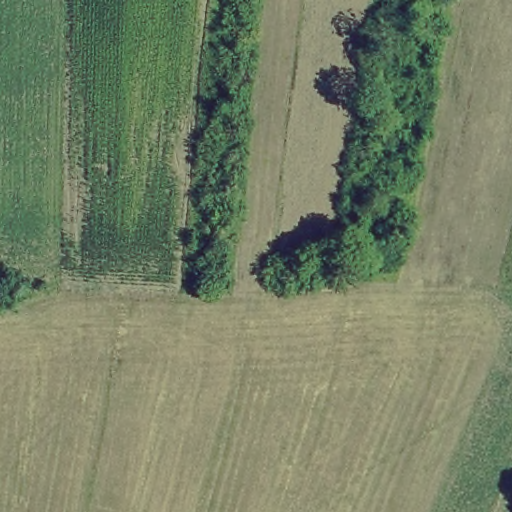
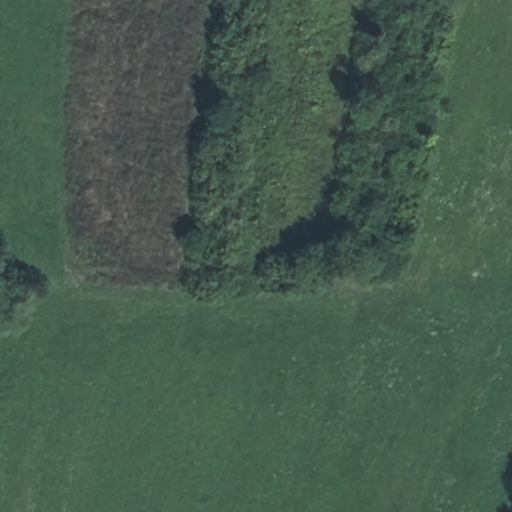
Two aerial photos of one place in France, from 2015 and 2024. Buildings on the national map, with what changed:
[]

